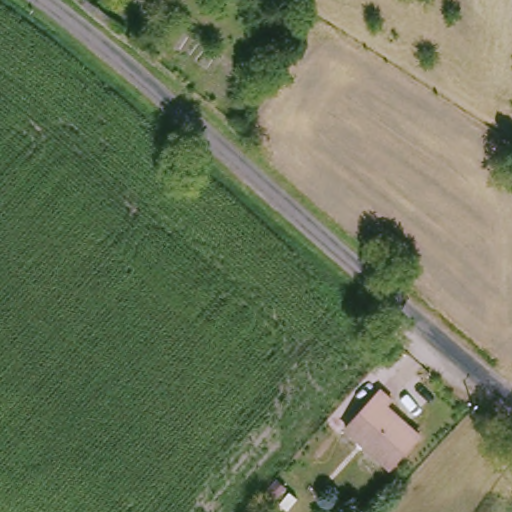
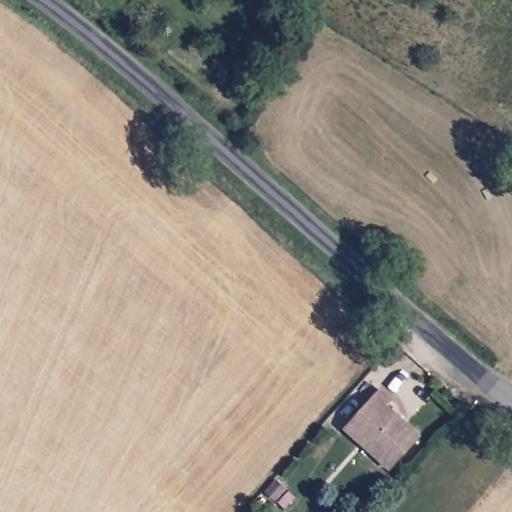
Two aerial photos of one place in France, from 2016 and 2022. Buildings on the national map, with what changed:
unchanged [(374,388),(385,398),(380,405),(416,433),(385,467),(340,427),(374,388)]

